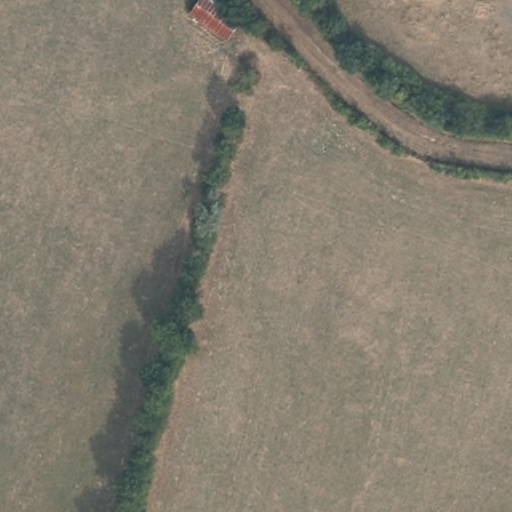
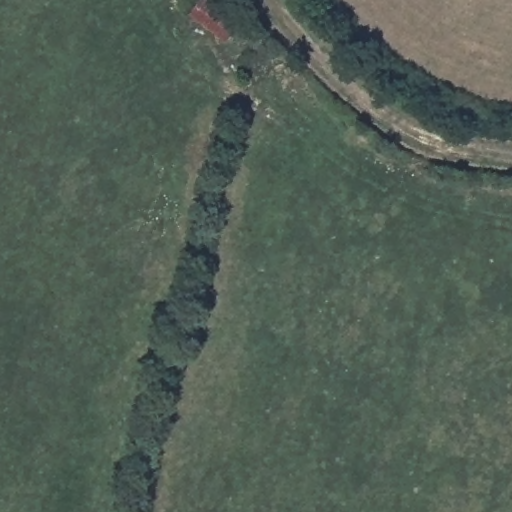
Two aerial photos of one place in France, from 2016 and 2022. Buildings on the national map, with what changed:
unchanged [(194,0),(209,0),(241,23),(226,42),(186,13),(194,0)]

